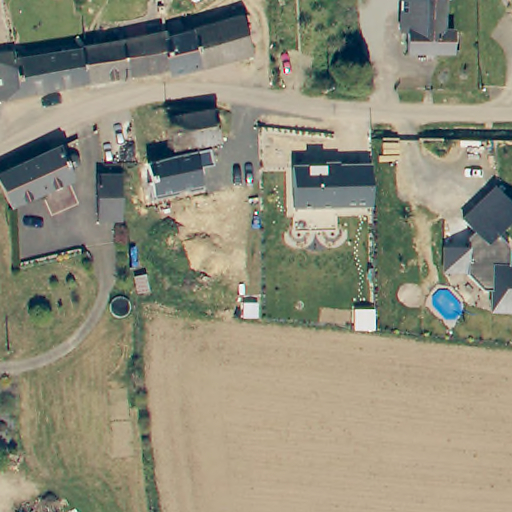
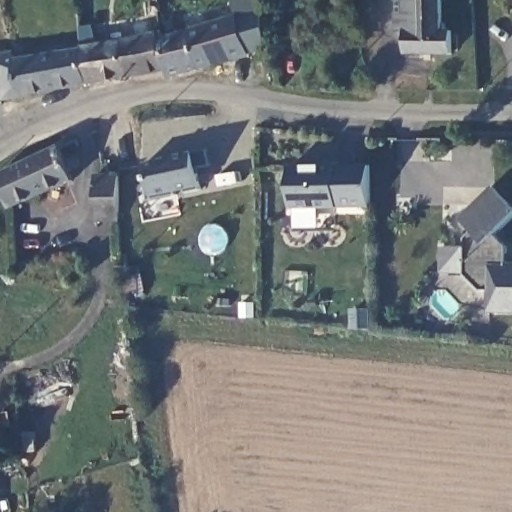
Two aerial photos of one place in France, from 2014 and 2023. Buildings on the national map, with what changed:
unchanged [(444,33),(456,32),(457,55),(410,56),(409,35),(401,35),(400,0),(444,0),(444,33)]
unchanged [(157,35),(182,27),(184,27),(226,15),(235,14),(244,49),(190,65),(165,72),(163,64),(124,73),(117,36),(156,29),(157,35)]
unchanged [(83,82),(77,45),(117,36),(124,73),(83,82)]
unchanged [(0,59),(77,45),(83,82),(0,96),(0,59)]
unchanged [(212,107),(217,137),(171,146),(166,114),(212,107)]
unchanged [(63,149),(67,149),(71,152),(73,156),(73,161),(71,166),(66,169),(68,175),(3,206),(0,200),(0,170),(54,143),(56,143),(59,152),(63,149)]
unchanged [(200,168),(203,188),(158,199),(146,164),(210,150),(213,166),(200,168)]
unchanged [(296,210),(295,166),(371,164),(373,207),(296,210)]
unchanged [(96,172),(124,177),(118,216),(118,224),(91,222),(96,172)]
unchanged [(446,277),(446,253),(469,253),(470,244),(476,237),(465,226),(498,193),(512,208),(512,229),(500,241),(512,252),(511,270),(512,271),(512,317),(494,317),(494,297),(485,297),(469,280),(469,278),(446,277)]

